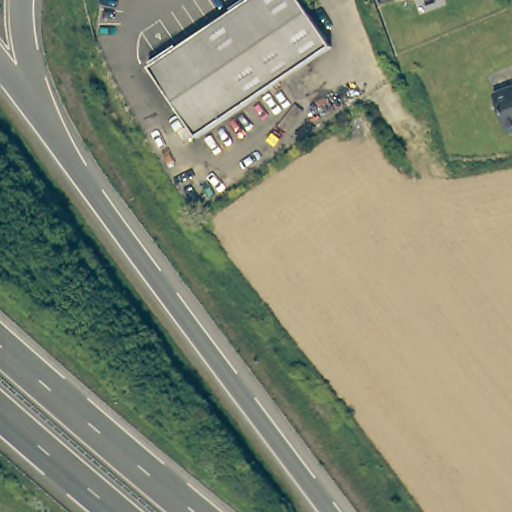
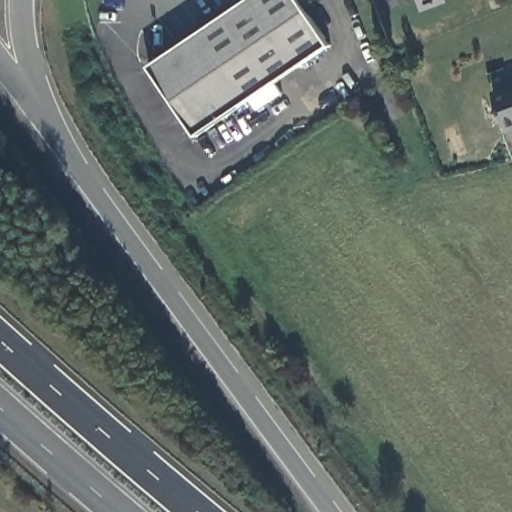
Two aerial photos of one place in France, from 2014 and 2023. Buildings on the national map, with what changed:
unchanged [(250,0),(301,0),(332,49),(196,137),(151,66),(250,0)]
unchanged [(493,92),(512,85),(512,131),(507,132),(493,92)]

